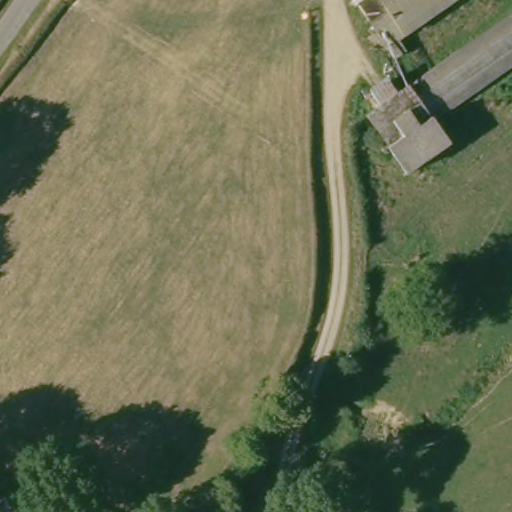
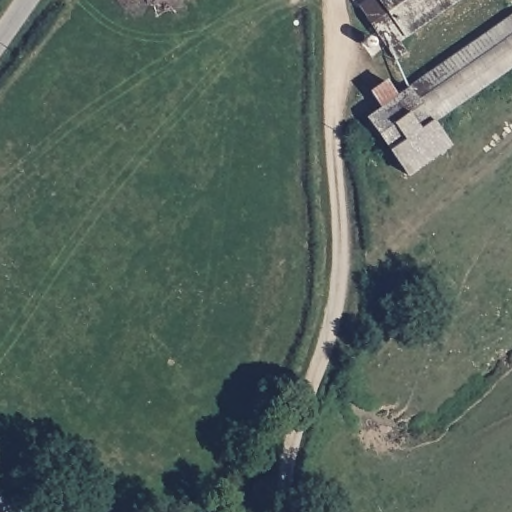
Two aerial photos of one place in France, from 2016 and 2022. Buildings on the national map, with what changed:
unchanged [(363,0),(463,0),(369,68),(341,27),(360,15),(354,6),(363,0)]
unchanged [(415,181),(371,118),(379,111),(369,97),(387,84),(398,97),(512,18),(512,69),(435,122),(454,153),(415,181)]

